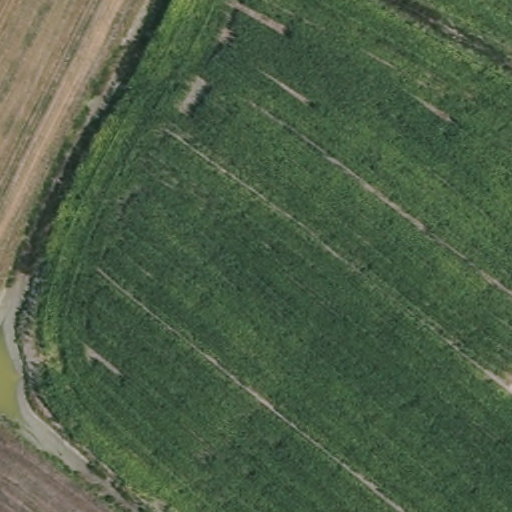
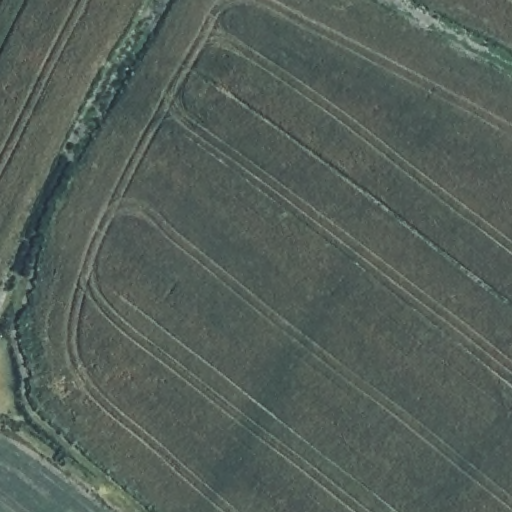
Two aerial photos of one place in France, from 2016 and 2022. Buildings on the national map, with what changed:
[]

